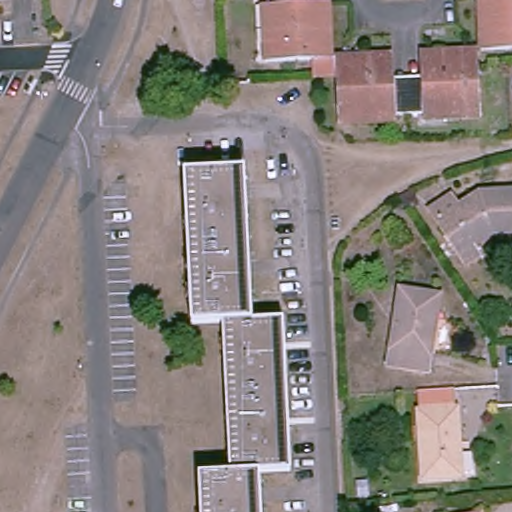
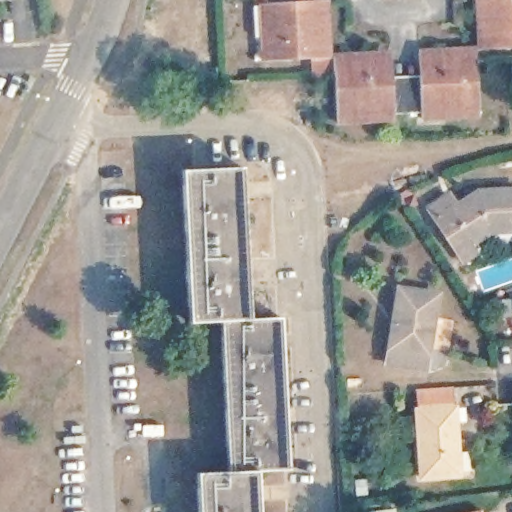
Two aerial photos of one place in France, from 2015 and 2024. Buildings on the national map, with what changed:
unchanged [(266,55),(264,0),(331,0),(333,51),(266,55)]
unchanged [(485,44),(482,0),(512,0),(512,43),(485,44)]
unchanged [(481,111),(424,114),(424,106),(410,107),(410,72),(422,72),(422,46),(477,44),(478,59),(481,111)]
unchanged [(338,51),(395,47),(395,72),(410,72),(410,107),(398,107),(397,115),(341,116),(340,72),(338,51)]
unchanged [(203,469),(231,467),(225,315),(193,315),(186,164),(244,163),(251,314),(283,315),(288,465),(262,467),(265,512),(205,512),(203,469)]
unchanged [(496,225),(486,230),(473,234),(478,241),(460,252),(435,214),(447,206),(477,192),(497,187),(512,183),(512,222),(496,225)]
unchanged [(387,360),(400,286),(440,292),(427,365),(387,360)]
unchanged [(431,479),(423,413),(463,410),(470,475),(431,479)]
unchanged [(480,507),(482,512),(457,512),(480,507)]

